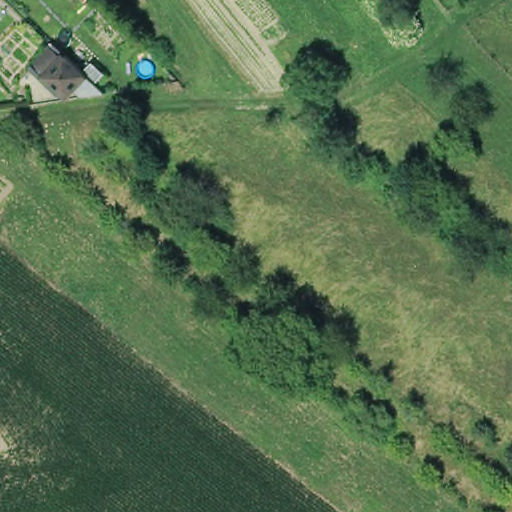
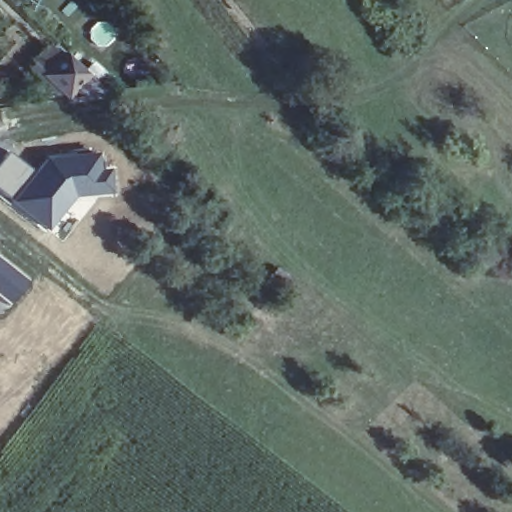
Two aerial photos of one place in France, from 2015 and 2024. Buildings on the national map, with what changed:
unchanged [(43,77),(30,66),(48,45),(61,58),(66,54),(88,75),(64,98),(43,77)]
new [(32,171),(45,156),(96,151),(99,168),(104,167),(108,194),(73,198),(45,231),(6,200),(32,171)]
new [(7,152),(32,171),(6,200),(0,194),(0,161),(7,152)]
new [(30,281),(8,310),(0,304),(0,258),(30,281)]

